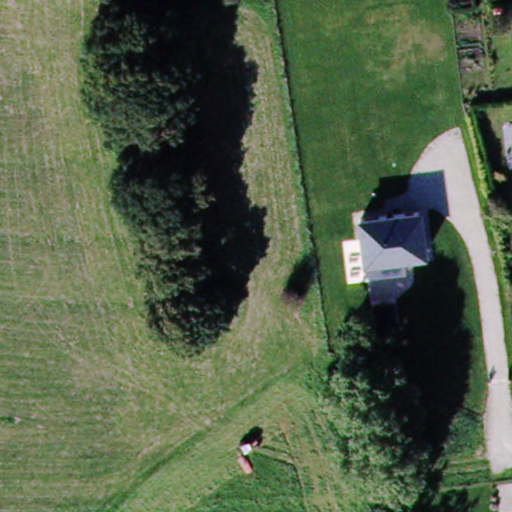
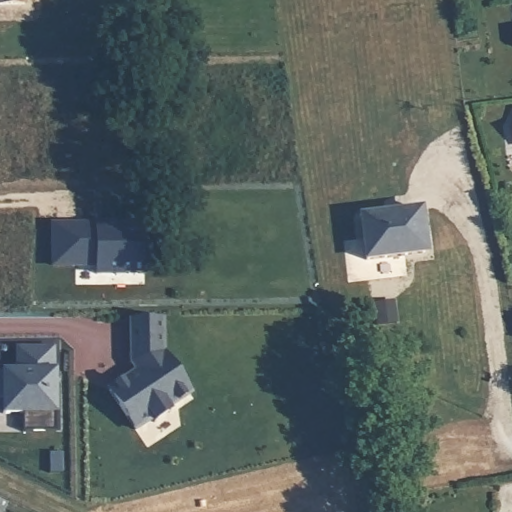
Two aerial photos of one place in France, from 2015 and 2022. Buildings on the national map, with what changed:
new [(27,3),(27,7),(0,7),(0,0),(43,0),(43,1),(27,3)]
unchanged [(359,219),(421,211),(426,256),(364,265),(359,219)]
new [(146,226),(146,276),(98,276),(98,267),(54,267),(54,227),(146,226)]
new [(169,321),(168,355),(196,396),(174,411),(177,415),(156,428),(154,424),(136,435),(105,388),(129,372),(126,323),(169,321)]
new [(54,350),(55,373),(56,373),(56,433),(23,434),(23,416),(4,416),(4,399),(0,399),(0,375),(4,375),(4,379),(18,378),(18,374),(18,350),(54,350)]

